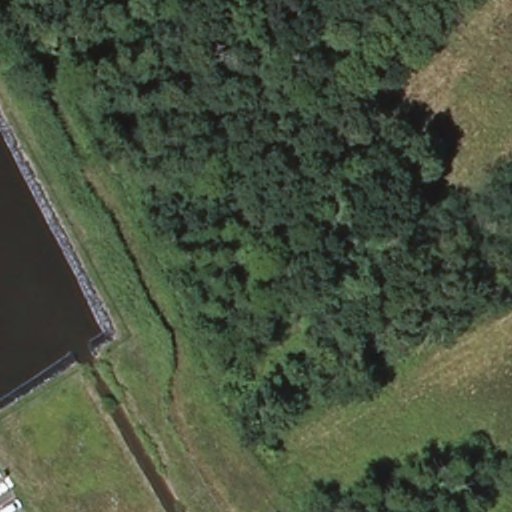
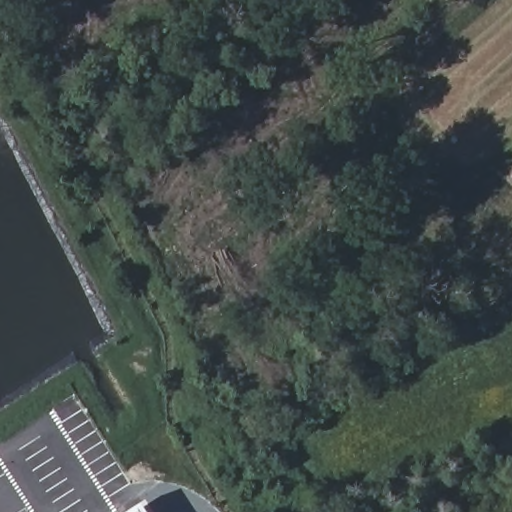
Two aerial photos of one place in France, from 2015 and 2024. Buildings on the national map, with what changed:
new [(140,503),(145,512),(125,512),(140,503)]

